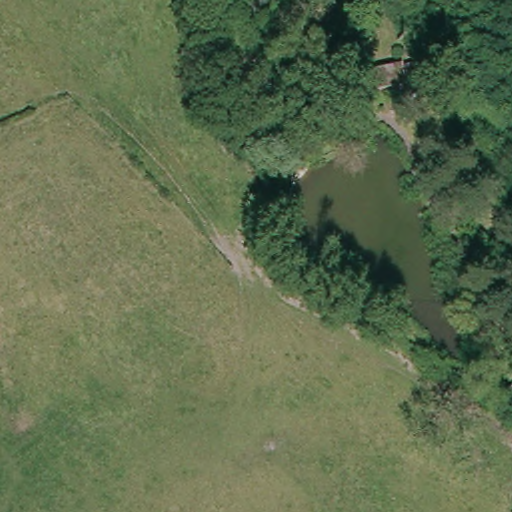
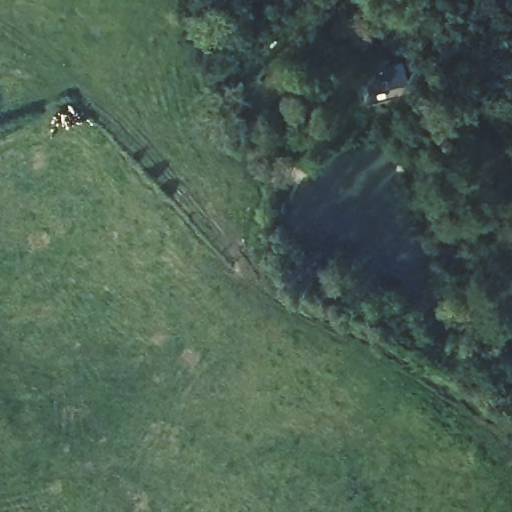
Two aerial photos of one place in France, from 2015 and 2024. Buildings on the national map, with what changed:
unchanged [(365,97),(360,81),(399,67),(405,84),(365,97)]

